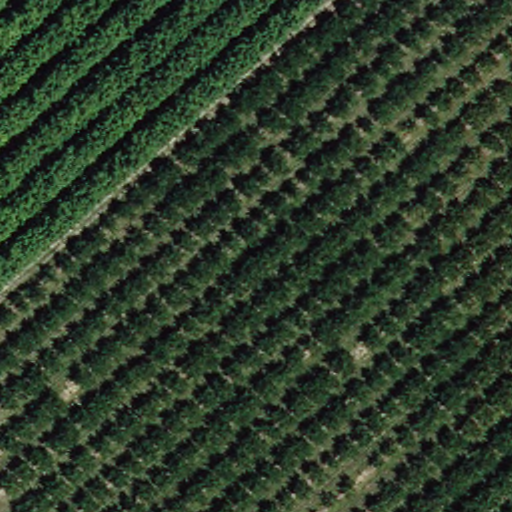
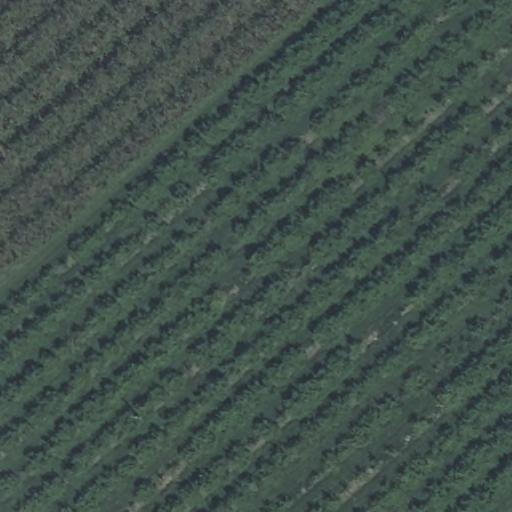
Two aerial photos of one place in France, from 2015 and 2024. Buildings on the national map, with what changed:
[]

